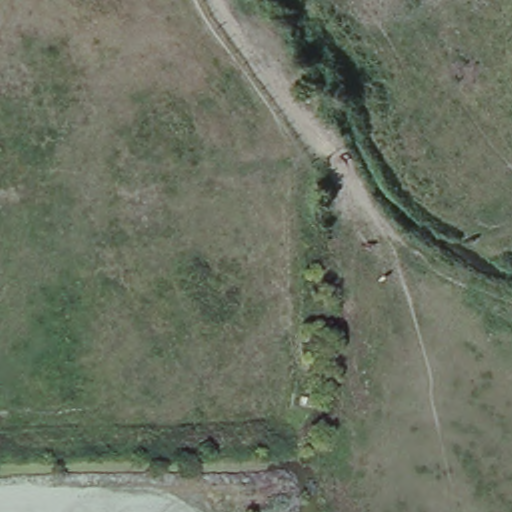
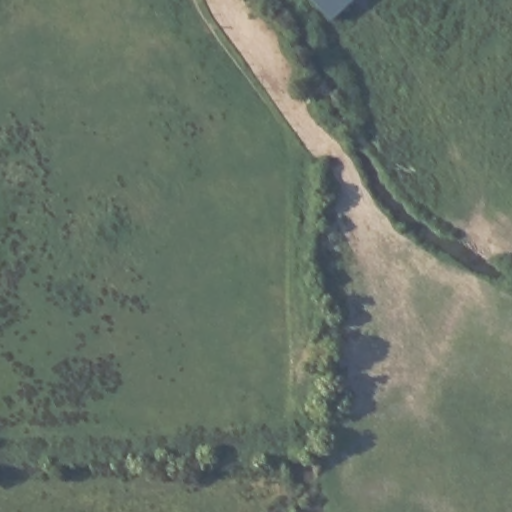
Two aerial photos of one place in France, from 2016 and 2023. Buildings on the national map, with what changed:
new [(317,0),(351,0),(333,19),(317,0)]

